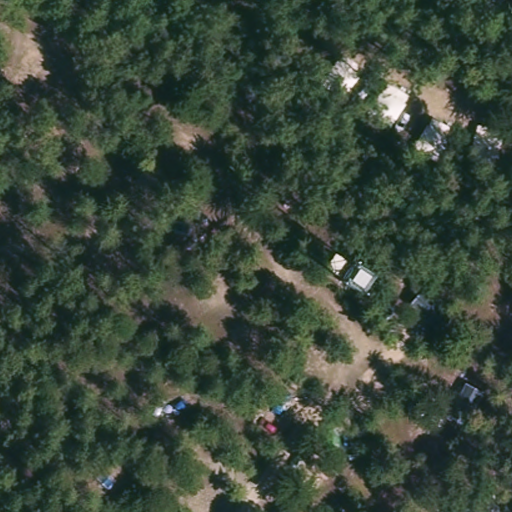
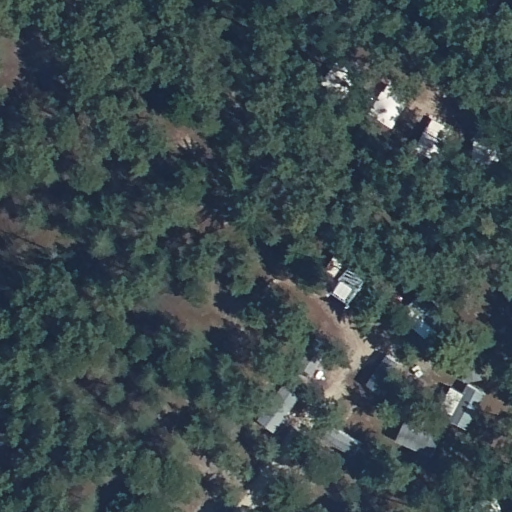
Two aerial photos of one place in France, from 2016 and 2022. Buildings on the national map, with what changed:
unchanged [(322,258),(310,262),(304,246),(316,242),(322,258)]

